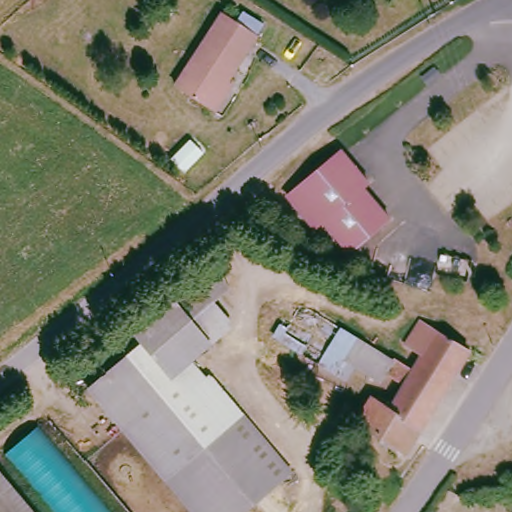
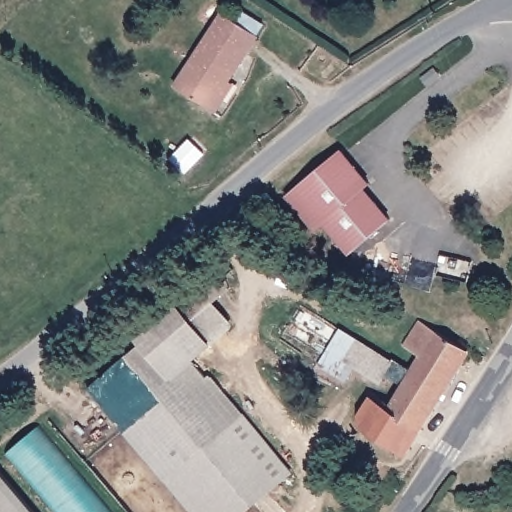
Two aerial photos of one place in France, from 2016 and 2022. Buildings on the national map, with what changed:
unchanged [(253,34),(207,106),(174,84),(220,13),(253,34)]
unchanged [(387,221),(347,252),(320,219),(312,225),(286,192),(339,150),(365,184),(361,187),(387,221)]
unchanged [(140,333),(131,322),(213,261),(229,284),(211,297),(230,322),(190,351),(168,368),(140,333)]
unchanged [(330,373),(268,333),(290,298),(364,347),(387,362),(383,368),(376,378),(351,362),(339,380),(330,373)]
unchanged [(391,356),(407,367),(418,350),(402,339),(416,317),(462,348),(400,450),(351,417),(365,395),(382,406),(398,380),(383,368),(387,362),(391,356)]
unchanged [(261,487),(230,512),(191,512),(84,375),(140,333),(168,368),(261,487)]
unchanged [(203,372),(210,368),(286,466),(261,487),(168,368),(190,351),(203,372)]
unchanged [(36,422),(113,512),(54,512),(1,452),(36,422)]
unchanged [(0,512),(0,474),(31,512),(0,512)]

